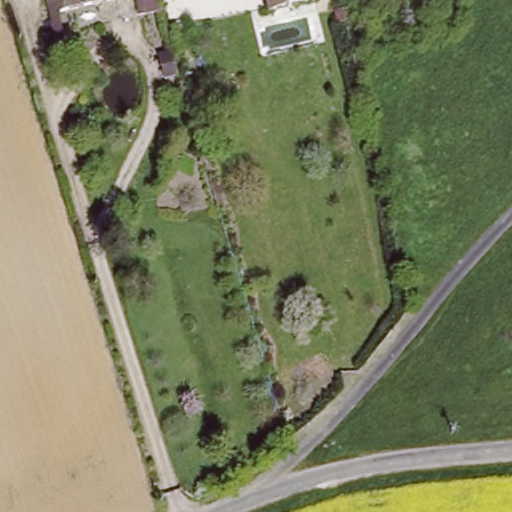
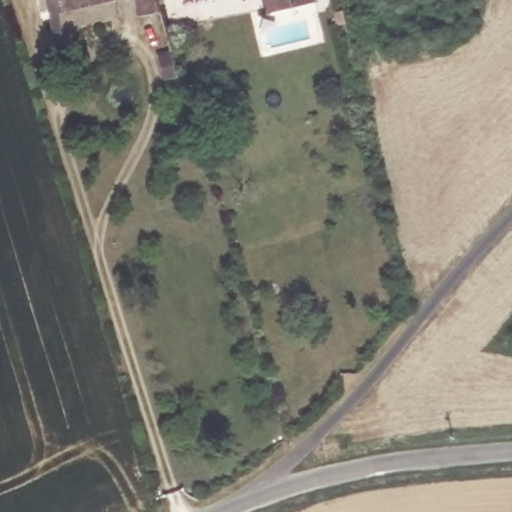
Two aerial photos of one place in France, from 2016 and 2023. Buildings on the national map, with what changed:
unchanged [(45,0),(121,0),(49,13),(45,0)]
unchanged [(141,0),(158,0),(142,4),(141,0)]
unchanged [(268,0),(317,0),(270,10),(268,0)]

